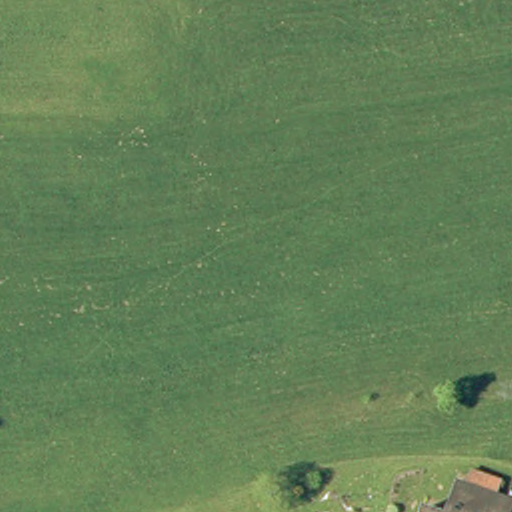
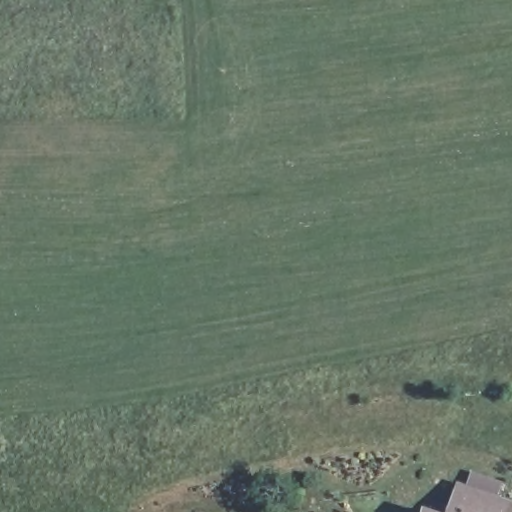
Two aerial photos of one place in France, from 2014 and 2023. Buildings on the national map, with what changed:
unchanged [(512,503),(512,512),(446,512),(453,488),(512,503)]

